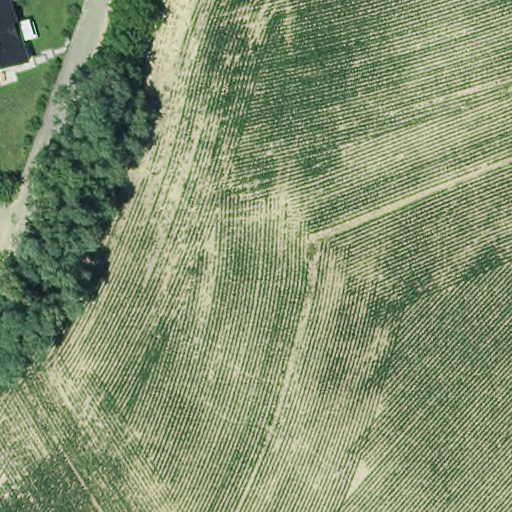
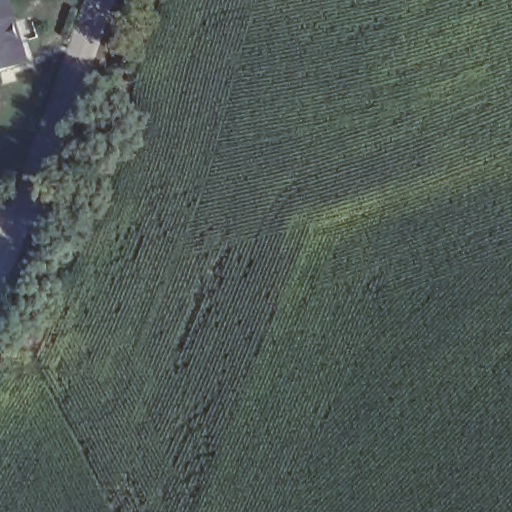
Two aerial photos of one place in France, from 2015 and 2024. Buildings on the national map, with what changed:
unchanged [(31,60),(0,69),(0,0),(13,0),(31,60)]

